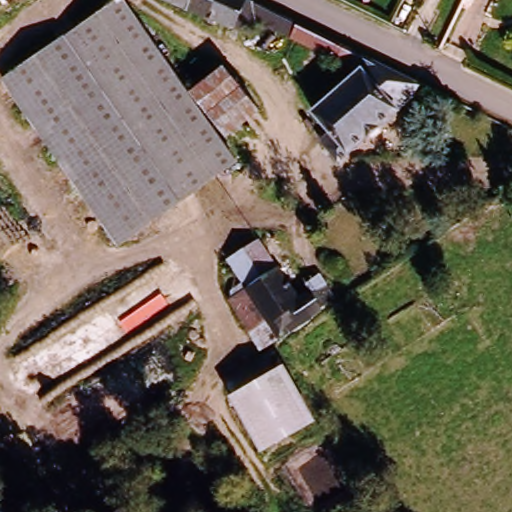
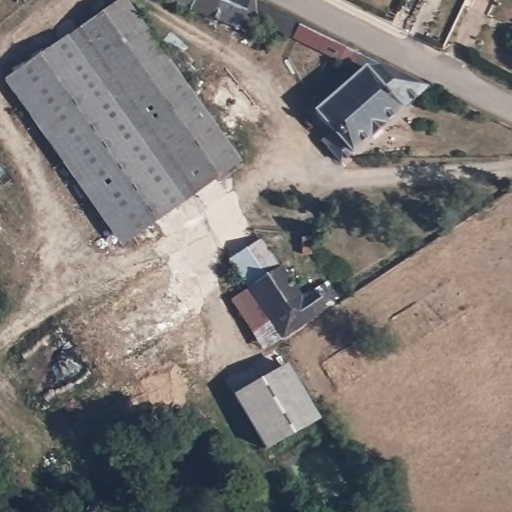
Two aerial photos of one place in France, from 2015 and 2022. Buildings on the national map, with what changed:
unchanged [(238,30),(161,0),(192,0),(240,26),(238,30)]
unchanged [(263,21),(256,34),(193,0),(267,0),(273,3),(263,21)]
unchanged [(411,0),(430,0),(426,9),(411,0)]
unchanged [(263,21),(273,3),(331,32),(320,52),(263,21)]
unchanged [(203,125),(234,171),(188,202),(79,42),(126,10),(176,85),(203,125)]
unchanged [(331,32),(445,92),(353,148),(341,130),(357,121),(337,93),(366,77),(320,52),(331,32)]
unchanged [(79,42),(188,202),(119,249),(10,88),(79,42)]
unchanged [(210,63),(235,102),(203,125),(176,85),(210,63)]
unchanged [(512,179),(512,203),(501,186),(512,179)]
unchanged [(324,319),(259,359),(231,301),(244,290),(229,266),(263,243),(324,319)]
unchanged [(287,365),(321,421),(266,452),(233,397),(287,365)]

